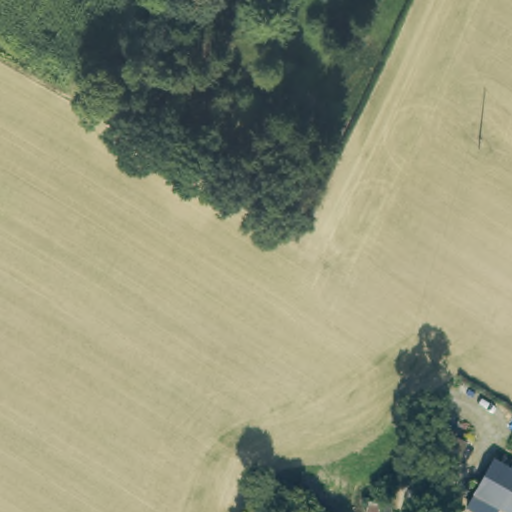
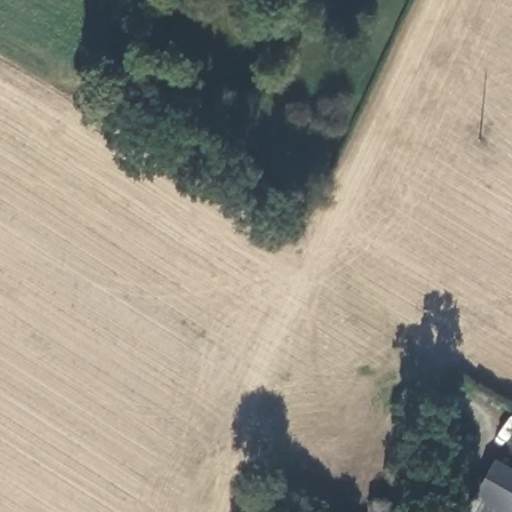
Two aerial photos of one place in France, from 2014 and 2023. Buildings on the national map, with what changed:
unchanged [(465,436),(456,458),(446,452),(440,462),(430,455),(441,423),(465,436)]
unchanged [(512,482),(512,510),(511,512),(499,512),(473,497),(489,470),(512,482)]
unchanged [(387,512),(370,512),(370,503),(387,502),(387,512)]

